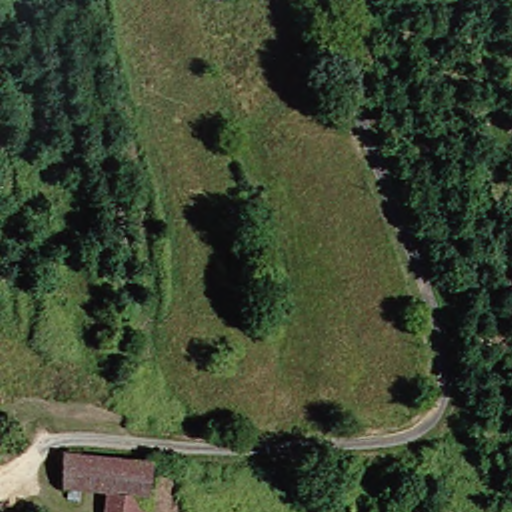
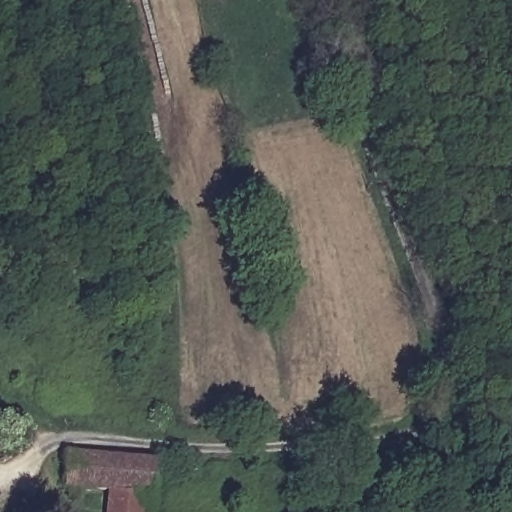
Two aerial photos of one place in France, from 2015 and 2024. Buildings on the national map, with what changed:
unchanged [(210,1),(210,0),(215,0),(210,1)]
unchanged [(147,450),(146,486),(103,485),(61,485),(63,450),(147,450)]
unchanged [(145,512),(104,512),(103,485),(146,486),(145,512)]

